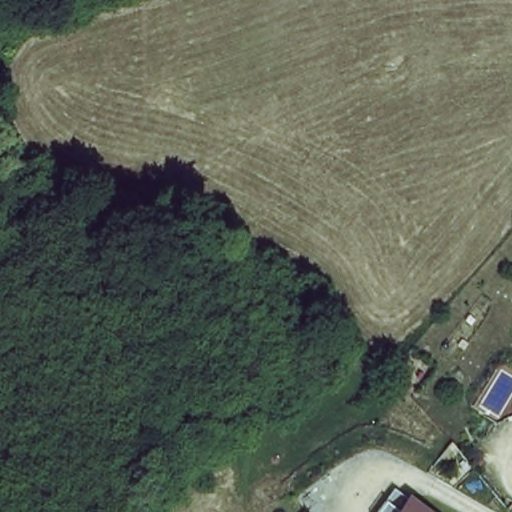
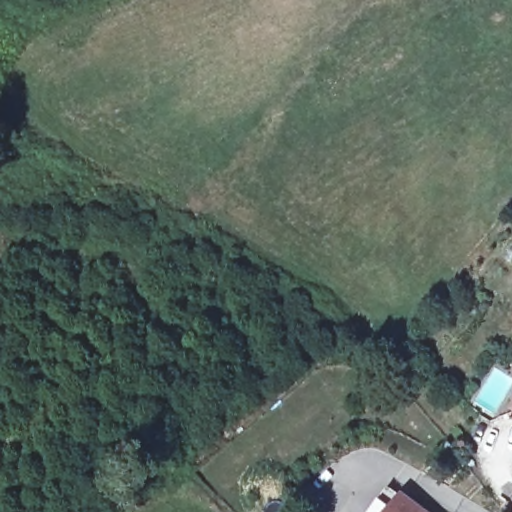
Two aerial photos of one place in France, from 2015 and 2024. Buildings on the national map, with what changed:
unchanged [(389,487),(402,497),(422,512),(369,512),(389,487)]

